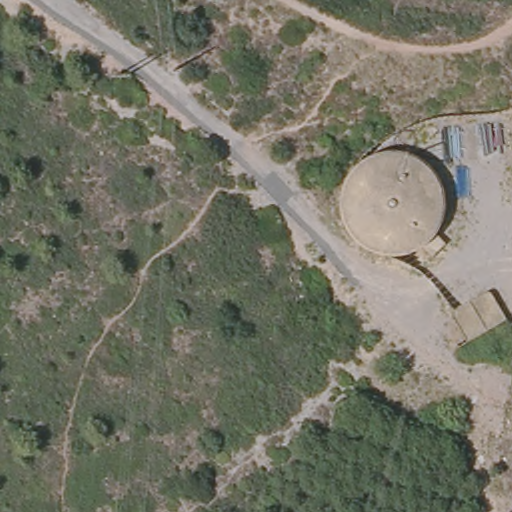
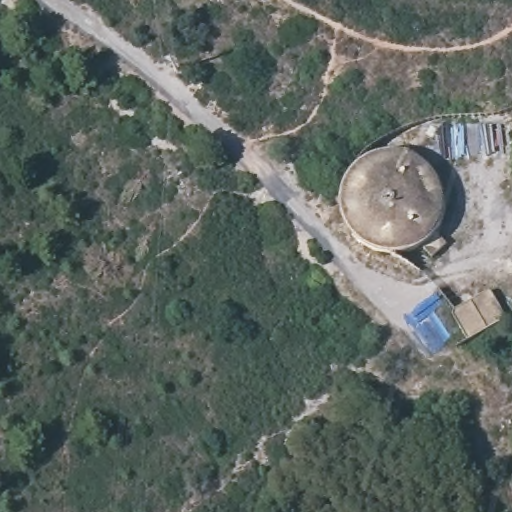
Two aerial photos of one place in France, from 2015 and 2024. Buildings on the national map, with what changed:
unchanged [(457,312),(496,293),(506,314),(466,333),(457,312)]

